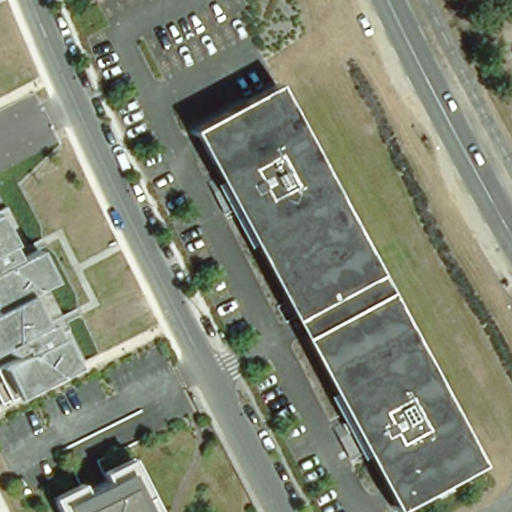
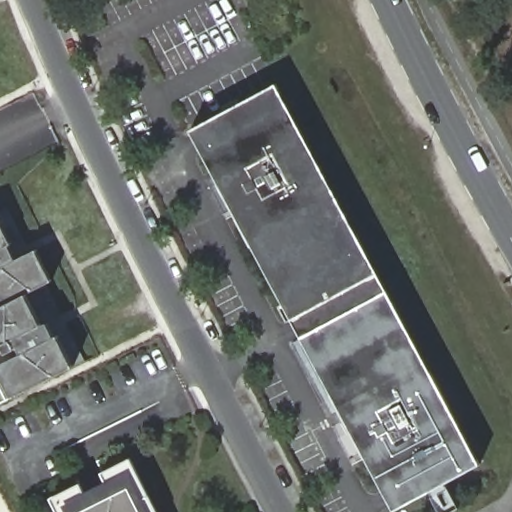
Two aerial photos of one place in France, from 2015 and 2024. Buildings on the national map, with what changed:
unchanged [(273,92),(277,90),(481,471),(459,482),(395,365),(310,206),(307,202),(283,157),(254,102),(273,92)]
unchanged [(403,512),(391,512),(190,137),(254,102),(283,157),(307,202),(310,206),(395,365),(459,482),(403,512)]
unchanged [(41,249),(56,282),(32,293),(46,325),(51,322),(59,337),(63,335),(80,367),(1,405),(0,402),(0,365),(21,353),(17,349),(7,354),(1,345),(0,346),(0,215),(20,260),(41,249)]
unchanged [(131,471),(152,512),(59,512),(57,508),(131,471)]

